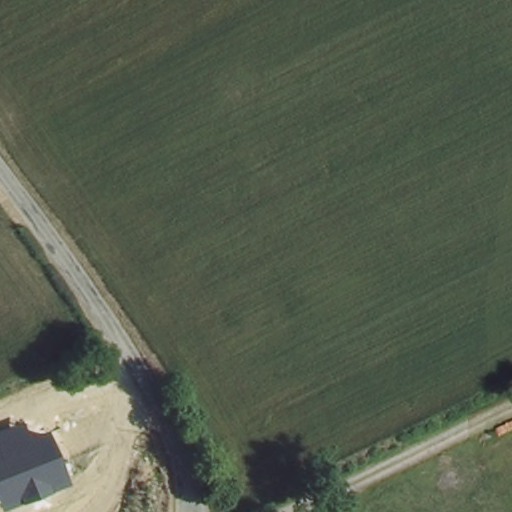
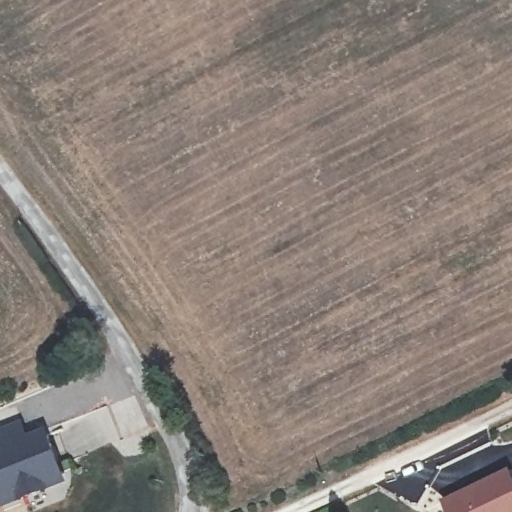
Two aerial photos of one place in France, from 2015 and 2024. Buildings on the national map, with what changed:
unchanged [(16,428),(22,444),(40,437),(52,468),(63,463),(67,473),(56,477),(59,484),(42,491),(16,501),(0,507),(0,434),(16,428)]
new [(442,502),(508,470),(512,477),(512,512),(447,512),(442,502)]

